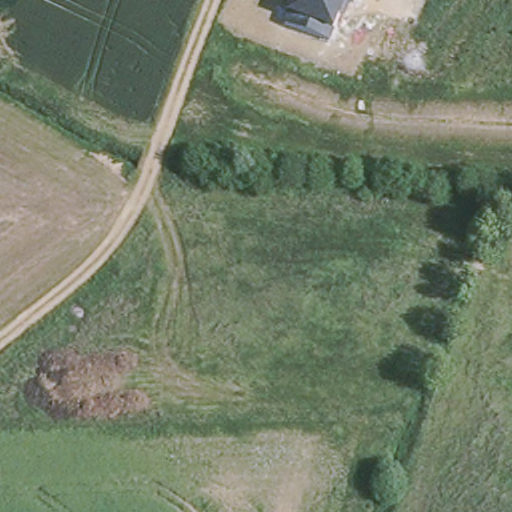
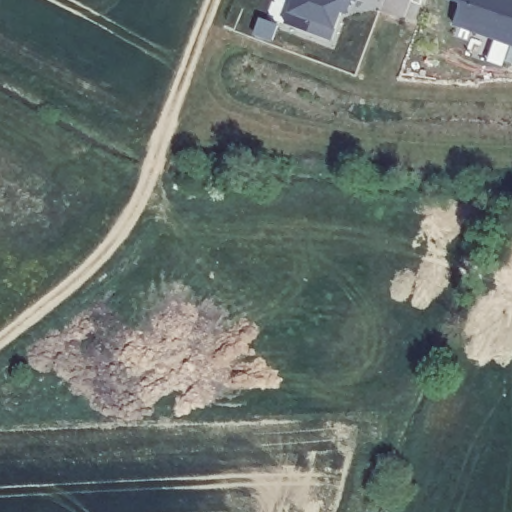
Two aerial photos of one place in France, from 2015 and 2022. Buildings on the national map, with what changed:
unchanged [(295,0),(357,0),(355,5),(344,1),(330,43),(286,26),(295,0)]
new [(460,1),(455,0),(512,0),(512,45),(452,24),(460,1)]

